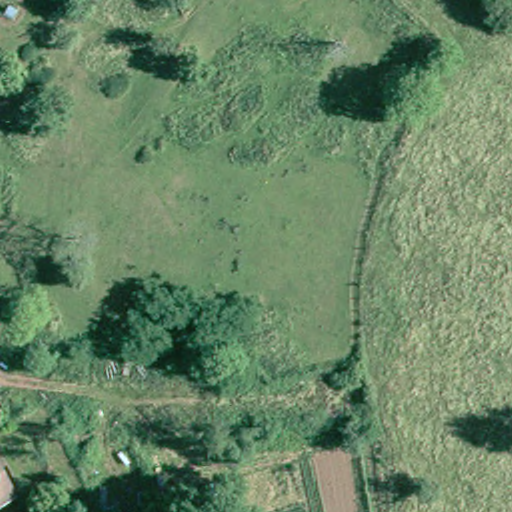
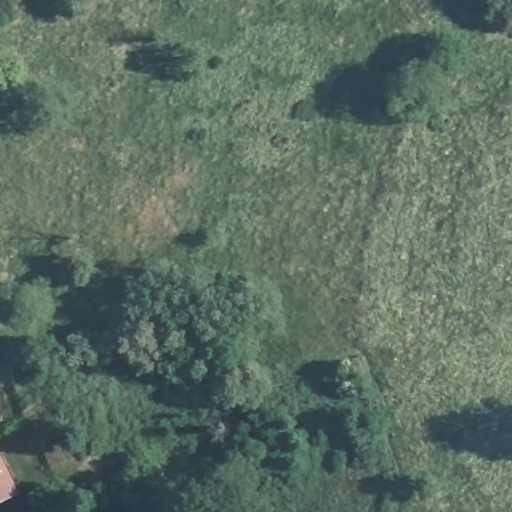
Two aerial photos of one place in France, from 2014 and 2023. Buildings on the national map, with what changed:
unchanged [(0,503),(0,458),(17,495),(0,503)]

